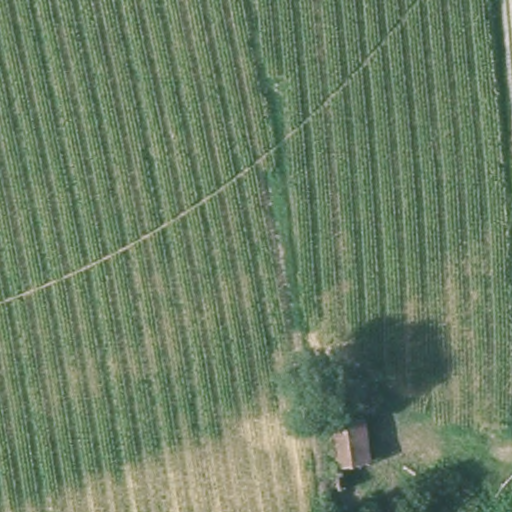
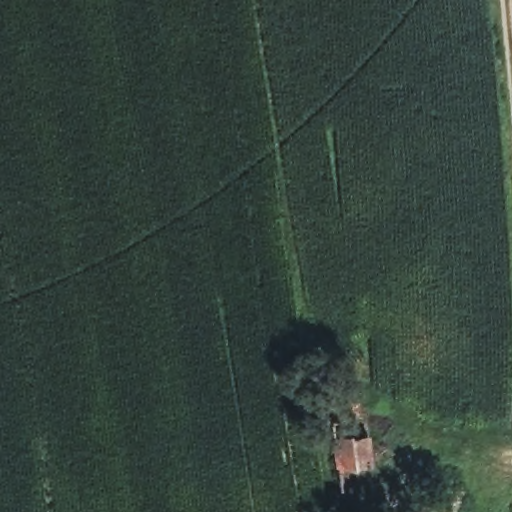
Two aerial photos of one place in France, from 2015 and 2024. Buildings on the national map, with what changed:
unchanged [(321,367),(358,359),(373,483),(336,490),(321,367)]

